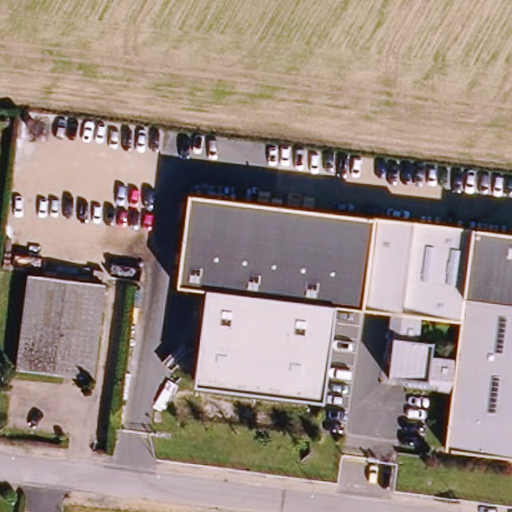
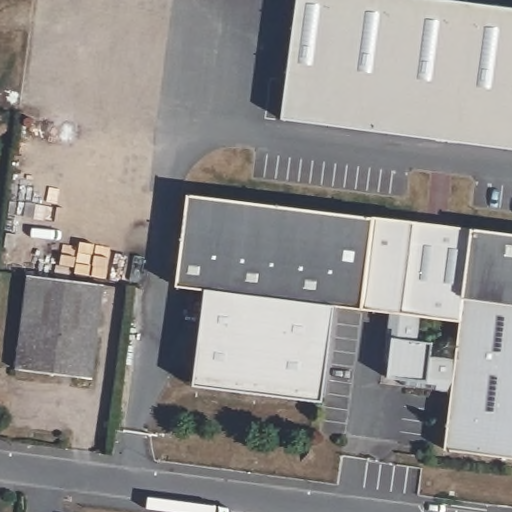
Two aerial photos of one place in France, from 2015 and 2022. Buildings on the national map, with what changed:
new [(298,0),(449,0),(512,8),(512,147),(283,117),(298,0)]
unchanged [(376,217),(366,310),(336,306),(323,405),(191,389),(204,290),(178,287),(189,195),(376,217)]
unchanged [(436,318),(425,317),(394,313),(366,310),(376,217),(448,226),(436,318)]
unchanged [(459,359),(464,322),(436,318),(448,226),(512,234),(512,457),(449,449),(456,392),(437,389),(441,357),(459,359)]
unchanged [(103,285),(92,379),(15,369),(27,275),(82,282),(103,285)]
unchanged [(437,343),(431,389),(427,388),(409,386),(405,380),(392,378),(393,365),(389,359),(394,313),(425,317),(422,341),(433,342),(437,343)]

